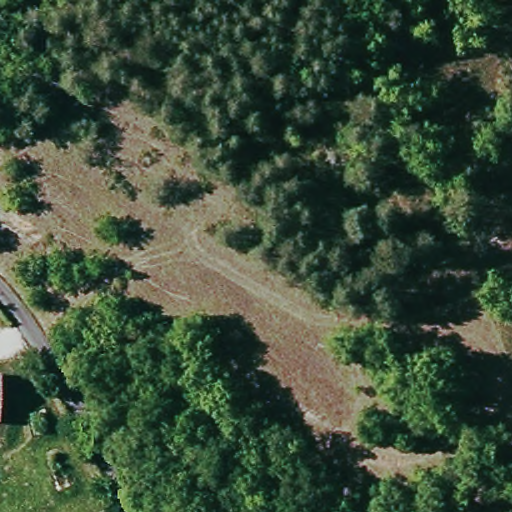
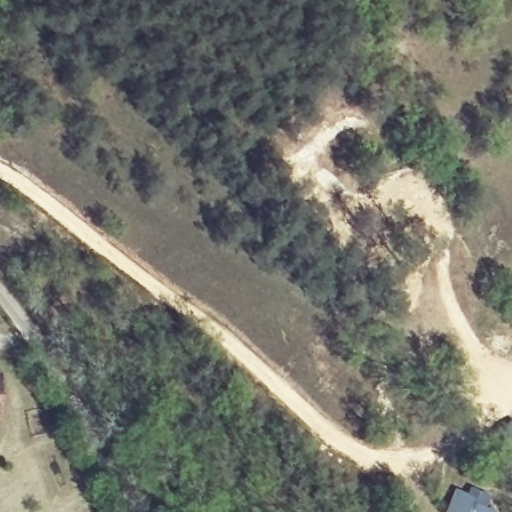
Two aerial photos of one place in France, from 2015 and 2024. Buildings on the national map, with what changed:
unchanged [(1,375),(0,400),(0,375),(1,375)]
new [(454,491),(466,496),(469,489),(490,498),(485,510),(492,512),(445,512),(454,491)]

